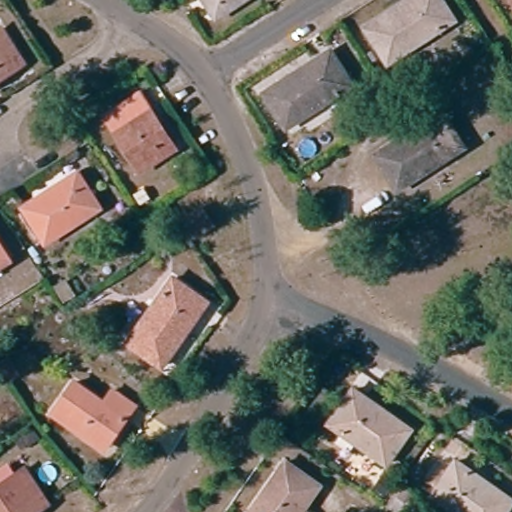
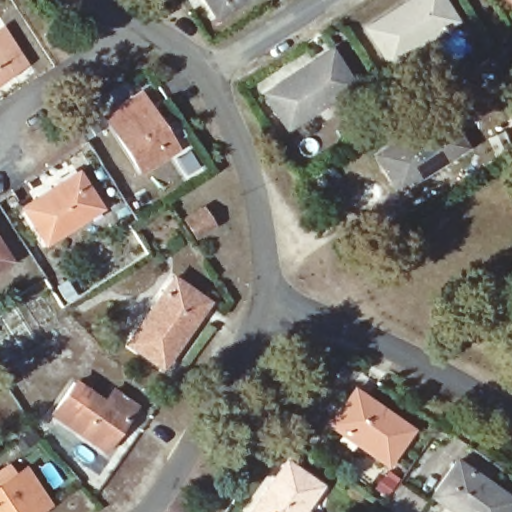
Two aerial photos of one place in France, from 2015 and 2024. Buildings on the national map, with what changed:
unchanged [(224,14),(215,0),(245,0),(224,14)]
unchanged [(407,0),(446,0),(456,16),(390,56),(370,24),(407,0)]
unchanged [(0,34),(12,26),(27,49),(35,61),(0,83),(0,34)]
unchanged [(340,41),(362,76),(295,118),(275,83),(340,41)]
unchanged [(140,96),(174,149),(141,170),(107,116),(140,96)]
unchanged [(452,108),(474,142),(405,182),(385,147),(452,108)]
unchanged [(83,166),(105,201),(52,235),(29,200),(83,166)]
unchanged [(214,224),(197,235),(187,218),(204,207),(214,224)]
unchanged [(0,266),(0,242),(11,259),(0,266)]
unchanged [(179,272),(212,295),(168,360),(134,338),(179,272)]
unchanged [(20,374),(8,383),(0,369),(0,365),(10,358),(20,374)]
unchanged [(102,441),(60,409),(80,378),(108,398),(117,385),(141,400),(119,432),(111,445),(102,441)]
unchanged [(415,423),(390,457),(332,418),(355,383),(415,423)]
unchanged [(466,512),(440,495),(463,459),(512,492),(512,512),(466,512)]
unchanged [(312,512),(252,512),(287,461),(322,485),(306,508),(312,512)]
unchanged [(45,497),(23,512),(0,512),(0,477),(22,463),(45,497)]
unchanged [(402,481),(412,488),(399,508),(389,501),(402,481)]

